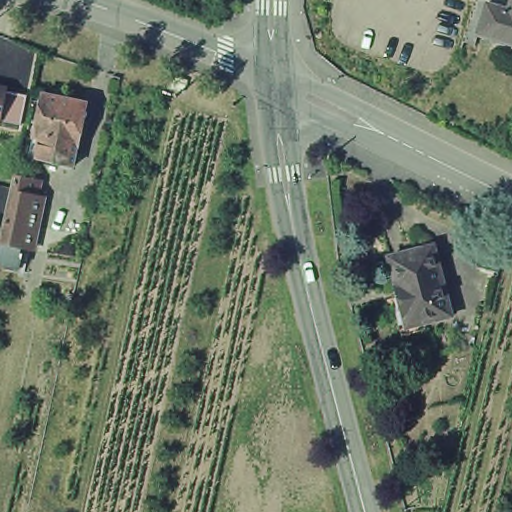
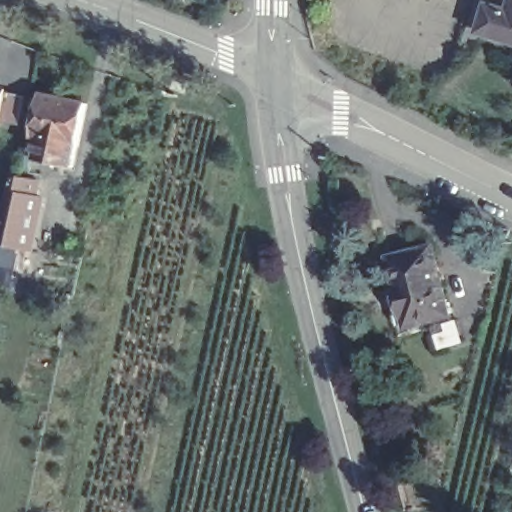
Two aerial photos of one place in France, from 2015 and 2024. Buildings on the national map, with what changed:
unchanged [(467,41),(465,41),(479,0),(512,0),(512,11),(491,5),(483,31),(479,45),(467,41)]
unchanged [(512,11),(512,40),(483,31),(491,5),(512,11)]
unchanged [(61,165),(34,159),(38,138),(33,137),(42,94),(86,104),(75,159),(73,168),(61,165)]
unchanged [(0,264),(0,262),(2,249),(16,180),(36,184),(33,198),(40,199),(30,254),(23,253),(23,254),(20,269),(0,264)]
unchanged [(406,337),(397,299),(405,298),(395,258),(438,247),(455,316),(426,324),(428,331),(406,337)]

